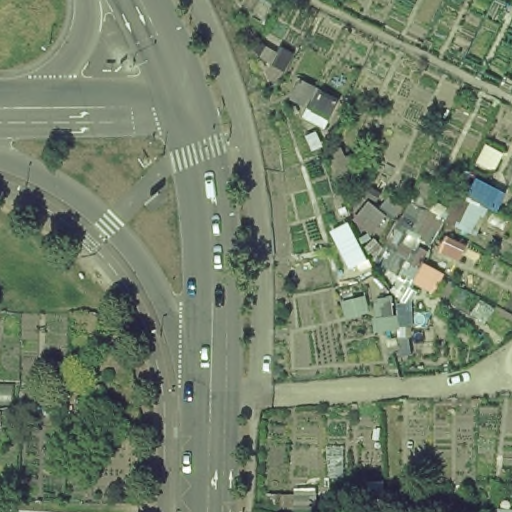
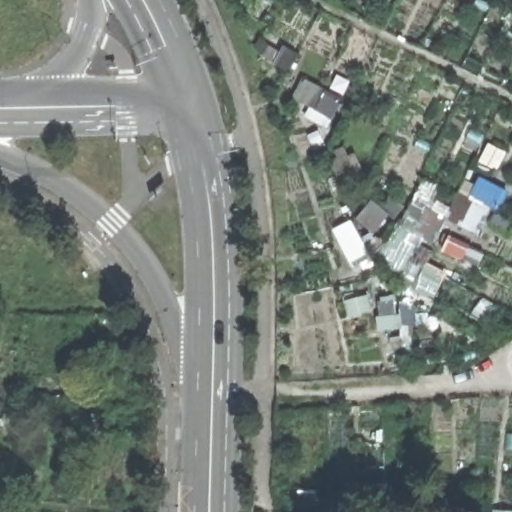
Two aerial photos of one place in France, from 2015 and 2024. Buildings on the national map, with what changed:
unchanged [(343,95),(335,121),(292,101),(302,77),(343,95)]
unchanged [(83,390),(108,389),(110,437),(84,437),(83,390)]

